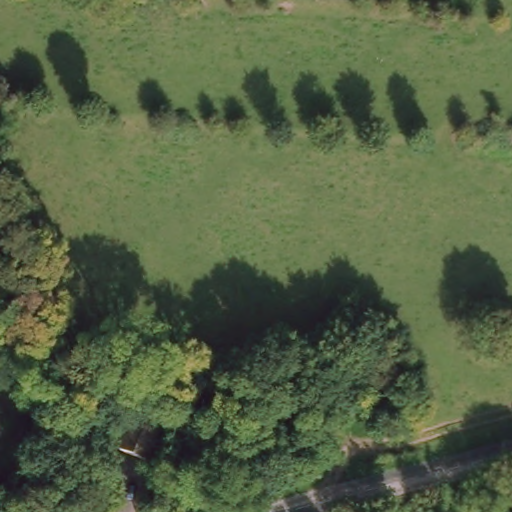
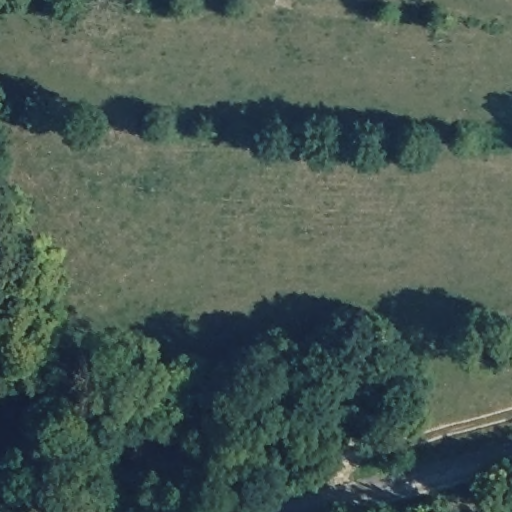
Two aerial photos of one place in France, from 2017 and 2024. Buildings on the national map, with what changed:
unchanged [(151,430),(139,454),(114,441),(127,418),(151,430)]

